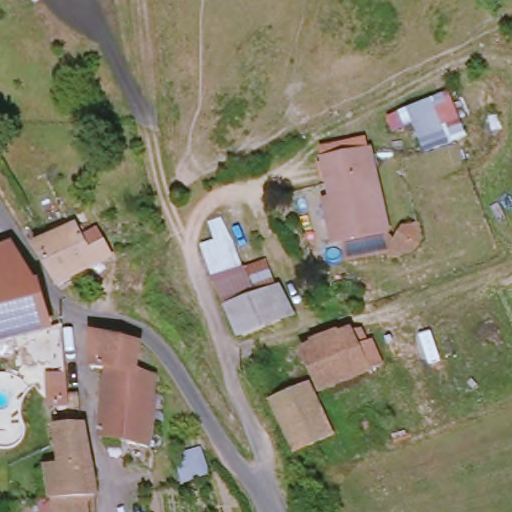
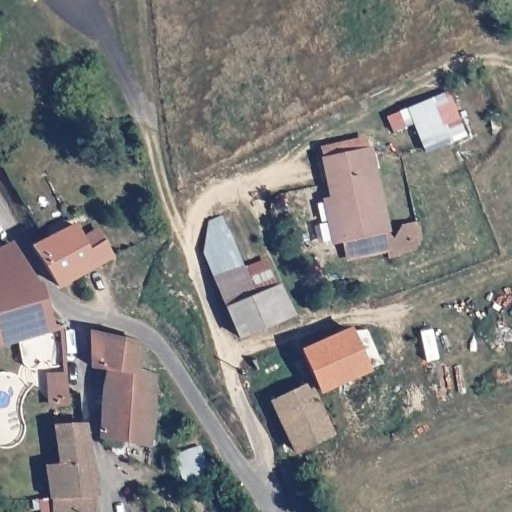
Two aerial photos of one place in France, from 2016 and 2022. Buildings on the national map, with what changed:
unchanged [(432,95),(444,125),(449,122),(458,143),(428,160),(425,154),(421,140),(415,125),(397,134),(390,117),(432,95)]
unchanged [(330,197),(327,184),(320,181),(318,159),(324,160),(372,142),(393,236),(397,235),(402,224),(421,223),(426,242),(402,260),(390,261),(390,254),(348,265),(345,242),(333,247),(323,197),(330,197)]
unchanged [(215,240),(208,221),(224,215),(244,258),(252,254),(257,262),(267,258),(282,285),(298,317),(240,340),(226,307),(200,245),(215,240)]
unchanged [(33,245),(82,222),(92,245),(108,237),(118,260),(62,288),(60,286),(33,245)]
unchanged [(43,275),(62,325),(2,345),(0,345),(0,246),(18,239),(43,275)]
unchanged [(355,320),(362,337),(372,333),(383,362),(375,366),(322,390),(305,342),(355,320)]
unchanged [(93,332),(139,342),(136,371),(122,369),(90,360),(93,332)]
unchanged [(105,438),(112,382),(122,369),(136,371),(160,375),(150,443),(105,440),(105,438)]
unchanged [(276,399),(312,384),(332,435),(295,450),(276,399)]
unchanged [(50,425),(73,423),(87,425),(95,461),(95,469),(43,465),(50,425)]
unchanged [(25,500),(32,465),(43,465),(95,469),(95,499),(88,499),(88,512),(42,512),(42,500),(25,500)]

